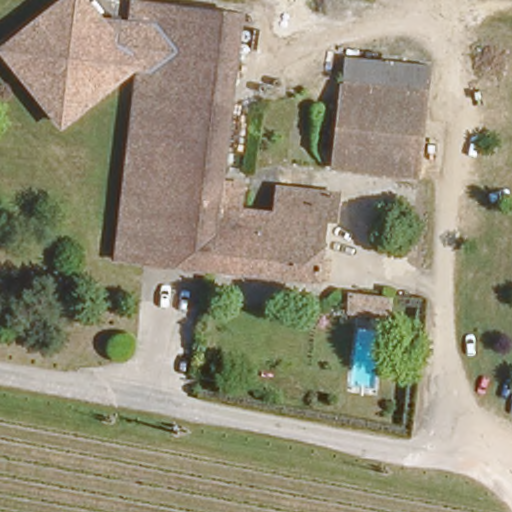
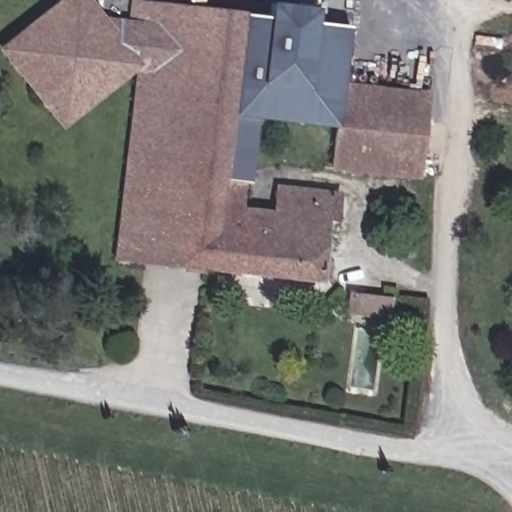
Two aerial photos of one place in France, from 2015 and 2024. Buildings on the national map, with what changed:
unchanged [(246,17),(229,148),(189,145),(179,259),(178,265),(114,257),(135,65),(58,125),(1,55),(69,0),(86,0),(106,22),(139,26),(141,4),(246,17)]
new [(229,148),(246,17),(267,18),(270,5),(316,10),(315,24),(349,28),(343,59),(340,82),(335,127),(258,119),(246,181),(225,179),(229,148)]
unchanged [(335,127),(340,82),(343,59),(418,67),(428,67),(426,89),(418,170),(331,162),(335,127)]
unchanged [(225,179),(246,181),(244,203),(278,206),(281,180),(338,186),(335,222),(327,222),(323,258),(331,260),(330,277),(319,277),(319,282),(178,265),(179,259),(189,145),(229,148),(225,179)]
unchanged [(388,333),(346,328),(347,307),(391,312),(388,333)]

